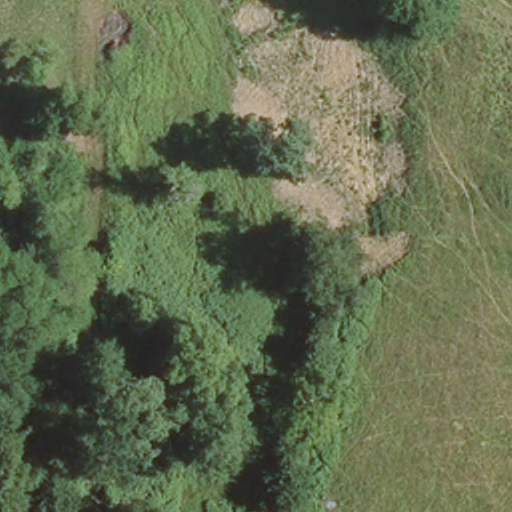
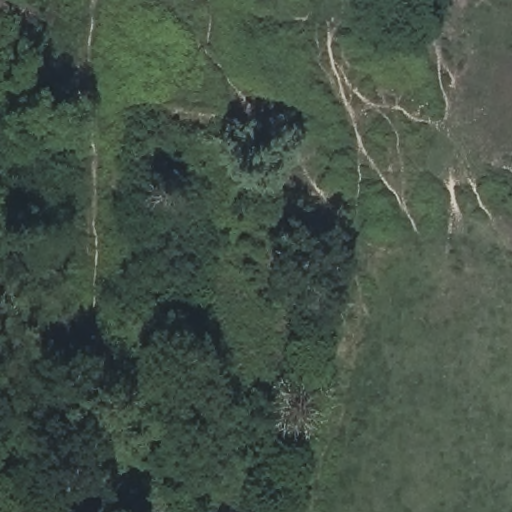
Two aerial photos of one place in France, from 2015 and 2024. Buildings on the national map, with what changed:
[]

